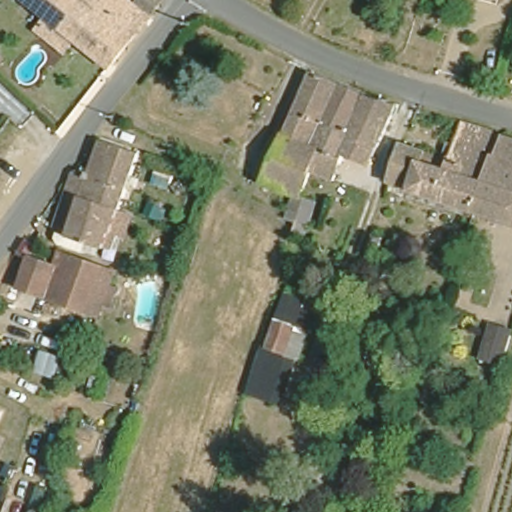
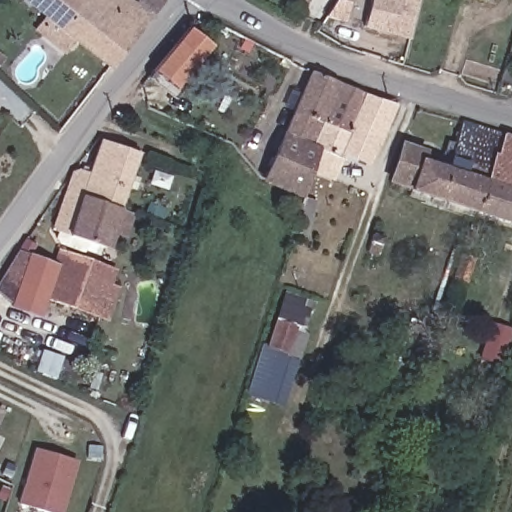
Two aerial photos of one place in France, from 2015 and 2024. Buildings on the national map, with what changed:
unchanged [(47,15),(29,0),(131,0),(149,14),(110,65),(74,35),(63,49),(36,28),(47,15)]
unchanged [(161,0),(152,10),(139,0),(161,0)]
new [(363,29),(371,0),(419,0),(409,40),(363,29)]
new [(180,90),(160,73),(192,34),(214,51),(180,90)]
unchanged [(307,230),(292,226),(303,193),(269,178),(264,175),(313,67),(364,87),(346,127),(321,118),(312,139),(320,142),(305,185),(303,191),(317,196),(307,230)]
unchanged [(370,157),(342,146),(327,190),(305,185),(320,142),(312,139),(321,118),(346,127),(364,87),(396,100),(370,157)]
unchanged [(411,184),(390,176),(402,140),(421,146),(449,155),(461,118),(503,131),(497,150),(493,150),(474,206),(411,186),(411,184)]
unchanged [(474,206),(493,150),(497,150),(503,131),(512,134),(512,218),(474,206)]
unchanged [(57,236),(54,231),(56,226),(54,220),(74,167),(81,165),(89,168),(101,136),(138,150),(112,226),(110,226),(104,241),(86,235),(83,245),(57,236)]
unchanged [(212,164),(218,146),(233,151),(228,169),(218,165),(212,164)]
unchanged [(63,247),(114,266),(100,310),(19,282),(20,278),(6,274),(18,246),(30,251),(58,260),(63,247)]
unchanged [(247,393),(261,346),(266,347),(275,320),(285,291),(312,301),(301,333),(307,335),(299,358),(287,355),(272,401),(247,393)]
unchanged [(64,376),(59,375),(56,380),(46,377),(43,386),(32,383),(42,351),(68,360),(64,376)]
unchanged [(0,414),(0,407),(3,408),(0,414)]
new [(60,512),(52,512),(18,503),(34,449),(75,460),(60,512)]

